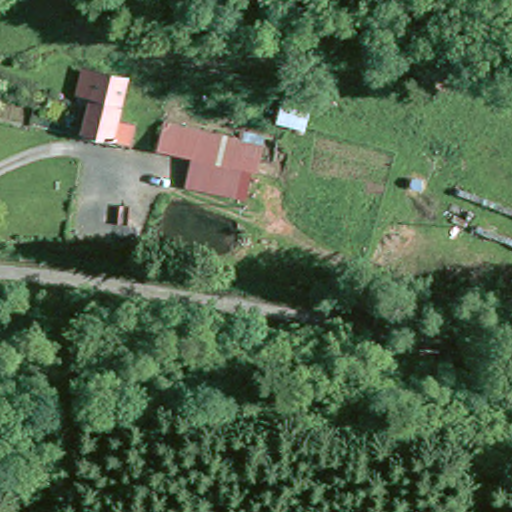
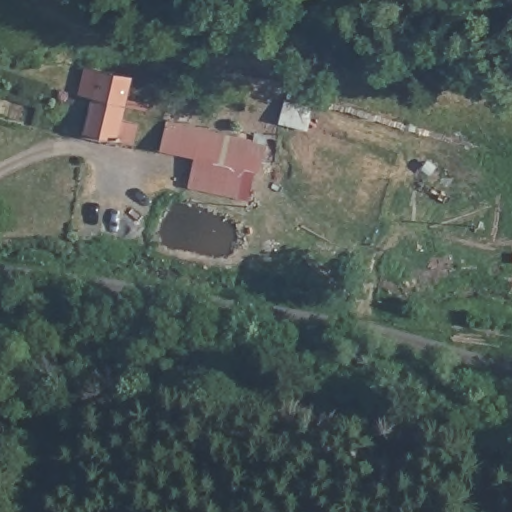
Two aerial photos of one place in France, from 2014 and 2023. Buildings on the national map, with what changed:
unchanged [(117,122),(134,126),(127,144),(82,132),(95,94),(84,91),(89,71),(102,75),(130,81),(117,122)]
unchanged [(185,175),(194,149),(160,139),(169,113),(255,138),(246,164),(238,162),(230,189),(185,175)]

